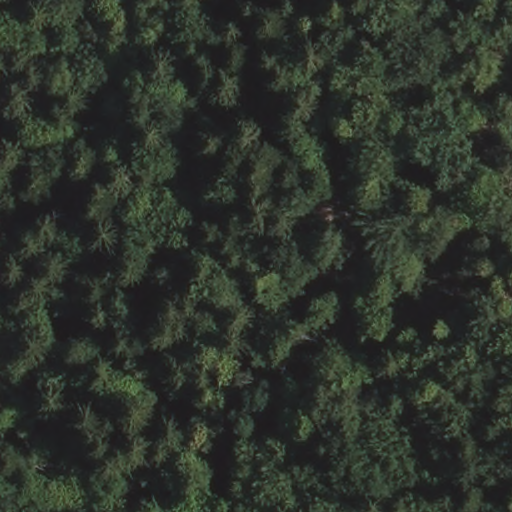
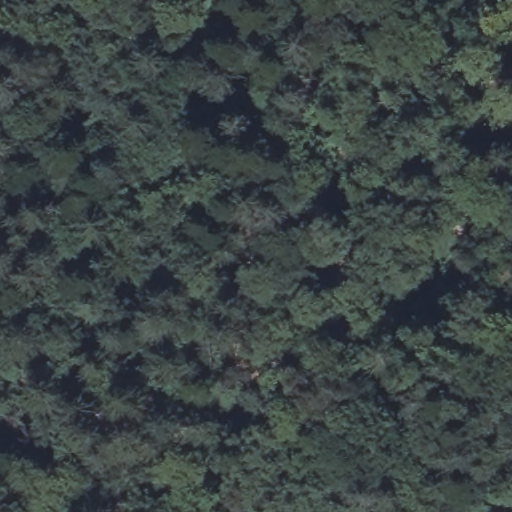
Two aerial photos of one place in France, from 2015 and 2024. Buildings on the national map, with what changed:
[]

